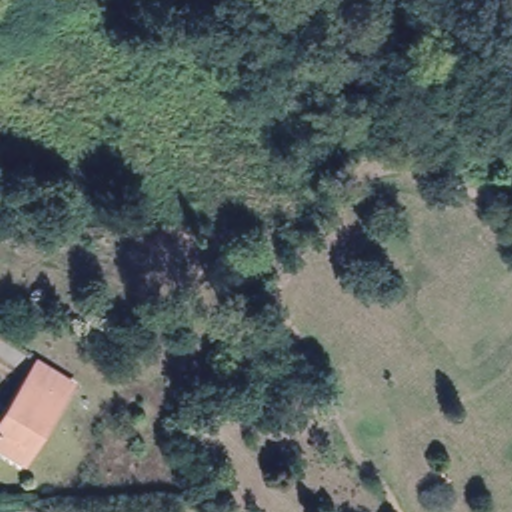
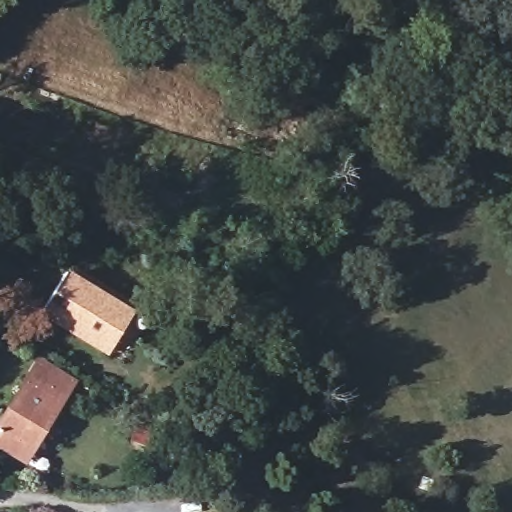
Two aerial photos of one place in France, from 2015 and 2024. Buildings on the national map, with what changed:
new [(107,357),(39,314),(65,272),(134,313),(107,357)]
unchanged [(0,435),(0,425),(38,363),(72,384),(30,453),(25,462),(0,446),(0,435)]

